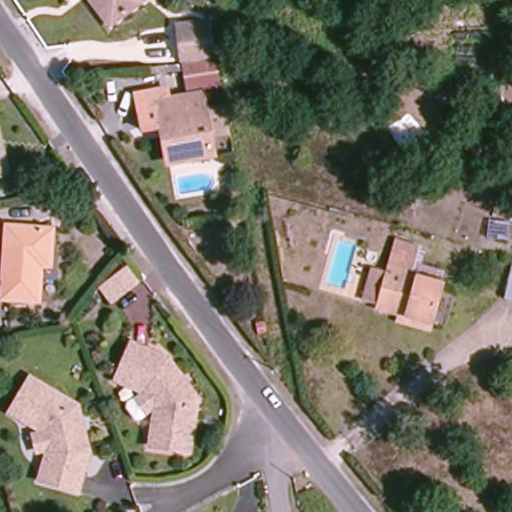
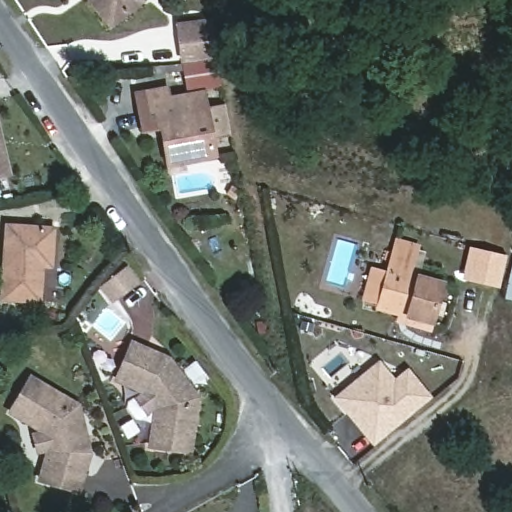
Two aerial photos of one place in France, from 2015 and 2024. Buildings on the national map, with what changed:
unchanged [(112,26),(92,0),(141,0),(142,2),(112,26)]
unchanged [(211,19),(218,57),(187,62),(181,24),(211,19)]
unchanged [(187,65),(216,60),(221,86),(191,90),(187,65)]
unchanged [(162,120),(159,105),(205,97),(217,156),(179,164),(170,166),(162,120)]
unchanged [(3,147),(10,176),(0,179),(0,133),(3,147)]
unchanged [(11,224),(53,226),(51,263),(43,262),(40,296),(6,295),(11,224)]
unchanged [(402,311),(381,305),(381,303),(367,300),(376,267),(390,271),(390,268),(397,245),(416,250),(410,273),(442,282),(432,320),(429,328),(400,320),(402,311)]
unchanged [(137,285),(114,305),(103,291),(126,272),(137,285)]
unchanged [(152,444),(157,406),(143,389),(119,378),(134,343),(168,358),(185,381),(196,396),(190,448),(152,444)]
new [(431,398),(372,446),(332,398),(378,359),(394,378),(406,367),(431,398)]
unchanged [(32,443),(42,440),(39,432),(11,416),(32,381),(79,409),(88,456),(79,493),(42,483),(48,458),(45,450),(36,453),(32,443)]

